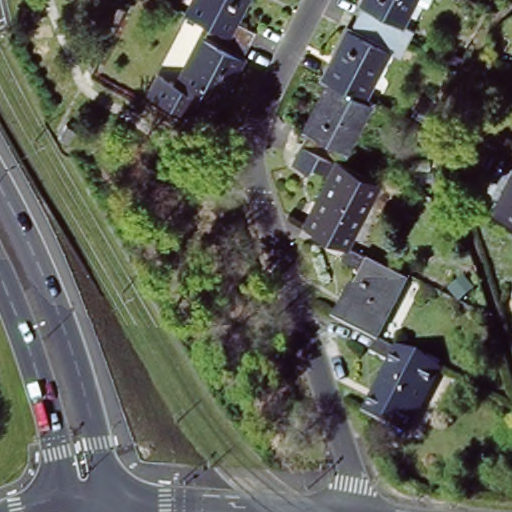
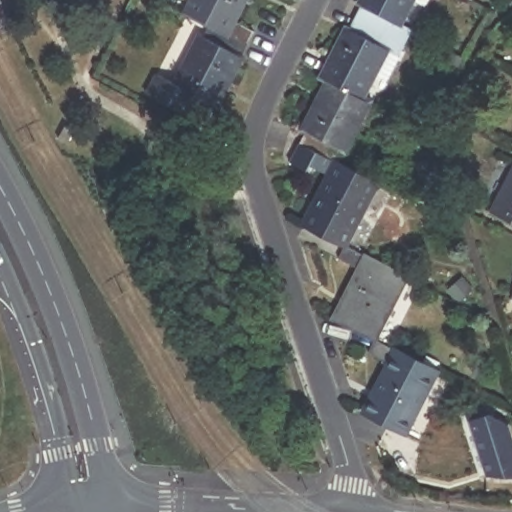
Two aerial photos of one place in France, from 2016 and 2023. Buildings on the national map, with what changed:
unchanged [(238,26),(258,36),(251,50),(213,30),(190,19),(199,0),(252,0),(238,26)]
unchanged [(361,22),(367,10),(365,9),(369,0),(429,0),(424,11),(415,7),(403,30),(417,36),(410,49),(361,22)]
unchanged [(403,62),(391,55),(366,104),(332,86),(325,83),(351,35),(354,36),(361,22),(410,49),(403,62)]
unchanged [(251,50),(219,110),(178,90),(203,41),(207,43),(213,30),(251,50)]
unchanged [(310,138),(307,136),(332,86),(366,104),(372,107),(341,169),(318,157),(304,150),(310,138)]
unchanged [(305,228),(331,180),(312,169),(306,177),(292,170),(304,150),(318,157),(341,169),(378,189),(347,250),(305,228)]
unchanged [(512,169),(512,225),(489,213),(512,169)]
unchanged [(408,282),(377,344),(334,321),(361,275),(341,264),(347,250),(408,282)]
unchanged [(439,376),(407,437),(367,416),(392,369),(371,357),(377,344),(439,376)]
new [(509,424),(512,434),(512,477),(486,476),(470,420),(489,414),(509,424)]

